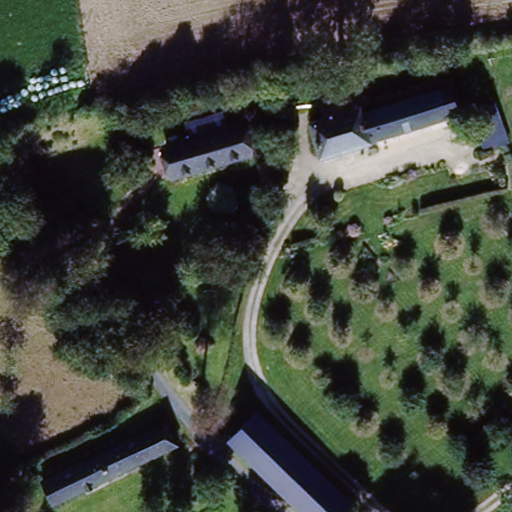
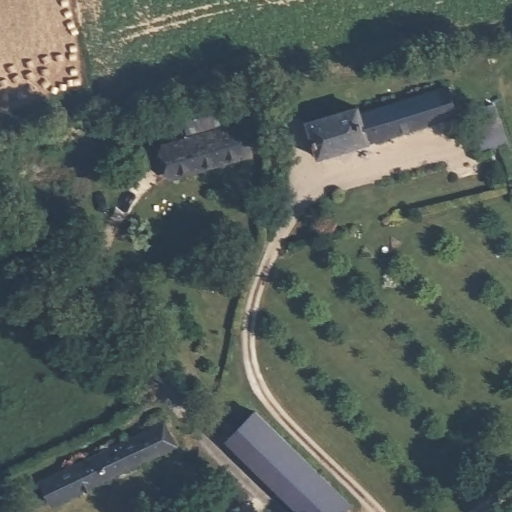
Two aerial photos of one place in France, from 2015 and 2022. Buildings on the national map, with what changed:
unchanged [(313,126),(365,108),(368,119),(448,93),(456,119),(326,161),(313,126)]
unchanged [(512,169),(490,177),(472,113),(493,106),(512,169)]
unchanged [(172,185),(160,149),(246,124),(255,157),(172,185)]
unchanged [(52,300),(37,313),(23,299),(40,286),(52,300)]
unchanged [(351,512),(296,512),(228,443),(267,410),(357,506),(351,512)]
unchanged [(168,422),(179,448),(50,503),(38,477),(168,422)]

